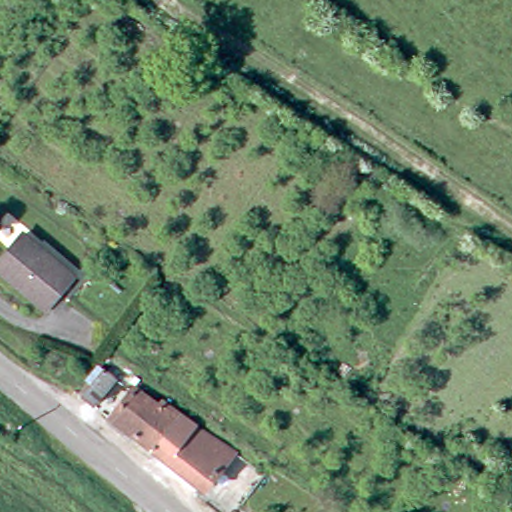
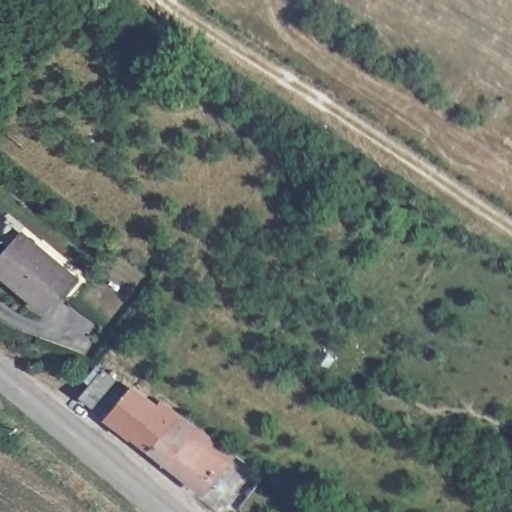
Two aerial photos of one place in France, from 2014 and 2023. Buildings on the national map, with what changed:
unchanged [(81,278),(55,311),(0,271),(28,237),(81,278)]
unchanged [(114,377),(91,405),(79,395),(103,367),(114,377)]
unchanged [(142,382),(163,400),(168,397),(185,408),(159,441),(145,429),(140,433),(116,413),(142,382)]
unchanged [(185,408),(241,449),(210,485),(159,441),(185,408)]

